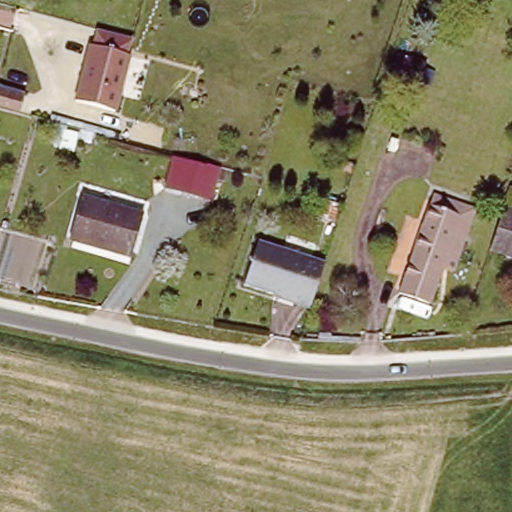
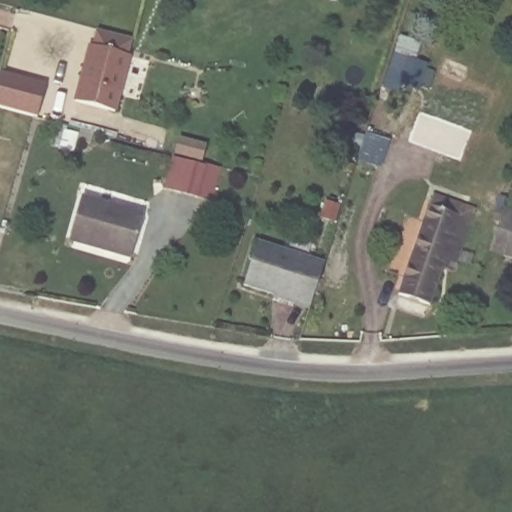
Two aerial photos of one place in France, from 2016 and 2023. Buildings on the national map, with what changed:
unchanged [(124,58),(128,59),(115,113),(73,103),(87,49),(92,50),(96,32),(128,40),(124,58)]
new [(38,116),(0,106),(0,77),(1,73),(46,86),(38,116)]
unchanged [(230,167),(221,202),(208,199),(177,191),(185,160),(215,168),(216,164),(230,167)]
unchanged [(347,194),(342,211),(327,207),(332,190),(347,194)]
unchanged [(438,275),(426,310),(395,299),(429,200),(460,211),(453,233),(467,238),(458,266),(452,280),(438,275)]
unchanged [(81,201),(143,216),(134,254),(72,239),(81,201)]
unchanged [(506,210),(512,212),(512,257),(493,250),(506,210)]
unchanged [(271,297),(242,290),(254,244),(280,251),(309,259),(322,262),(322,263),(310,310),(292,304),(271,299),(271,297)]

